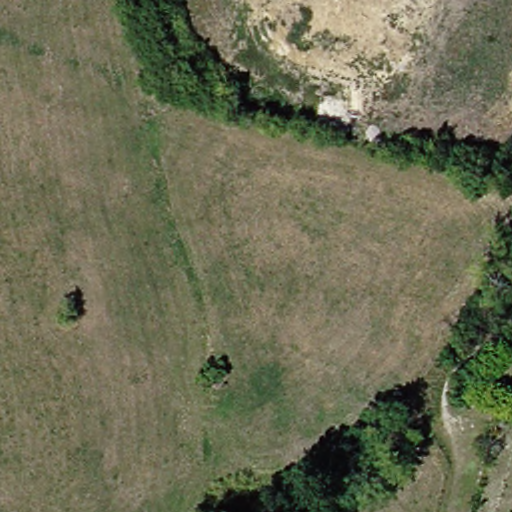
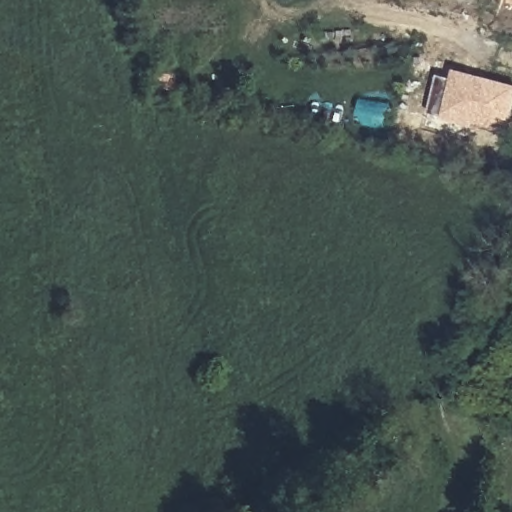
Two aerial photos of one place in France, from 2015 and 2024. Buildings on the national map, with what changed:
new [(508,0),(512,0),(512,2),(507,0),(508,0)]
new [(471,121),(470,125),(427,113),(436,72),(450,76),(453,66),(512,83),(512,106),(506,129),(471,121)]

